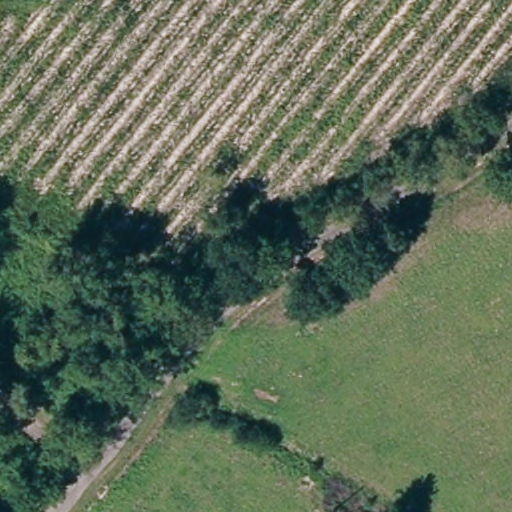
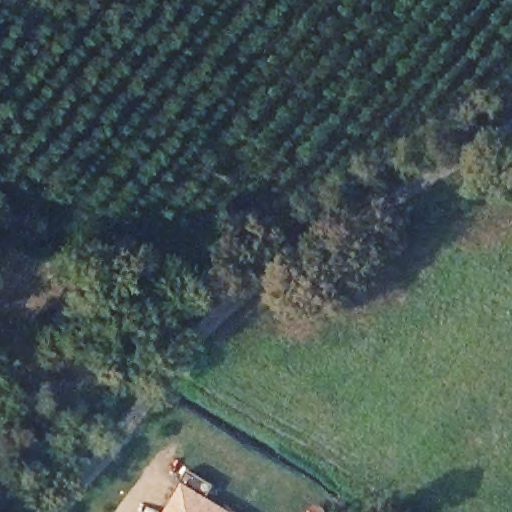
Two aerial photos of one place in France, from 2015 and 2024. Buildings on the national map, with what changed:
new [(190,472),(217,487),(210,499),(231,512),(166,512),(190,472)]

